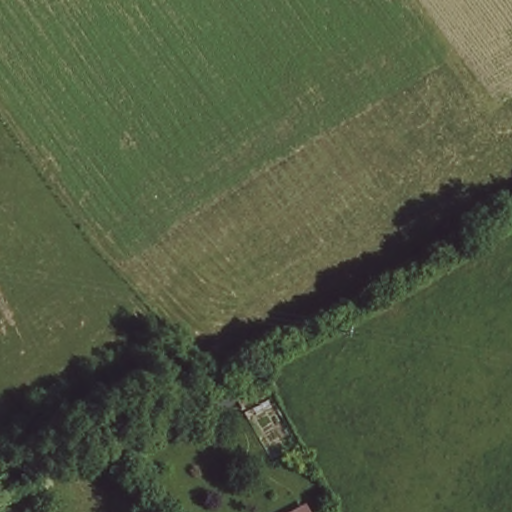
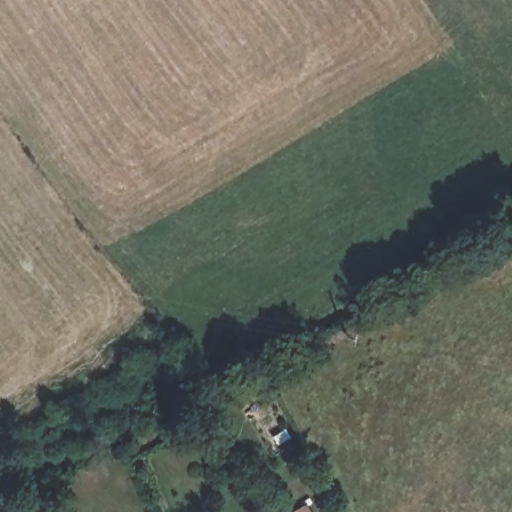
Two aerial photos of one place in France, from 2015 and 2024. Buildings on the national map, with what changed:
[]

